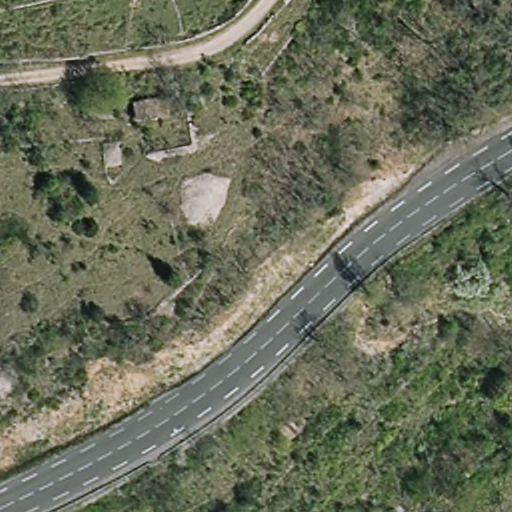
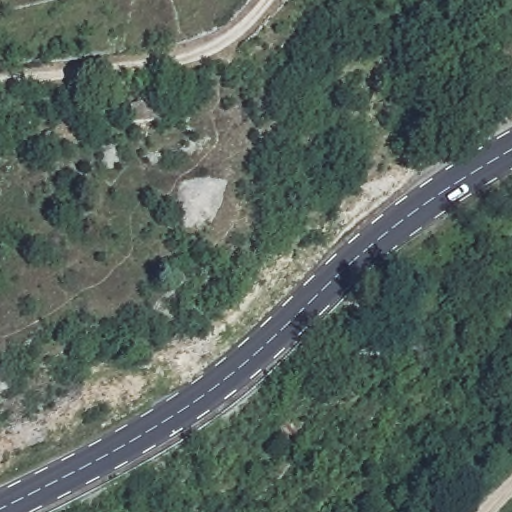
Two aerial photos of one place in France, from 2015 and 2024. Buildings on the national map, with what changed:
unchanged [(154,121),(152,103),(193,96),(196,114),(154,121)]

